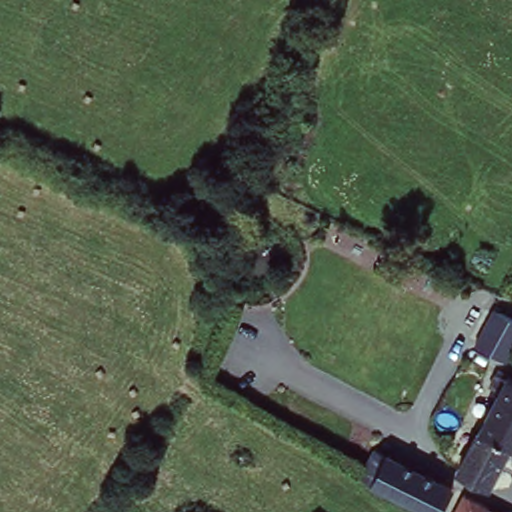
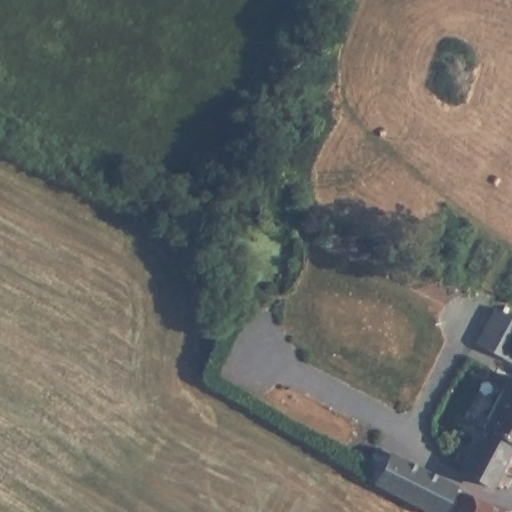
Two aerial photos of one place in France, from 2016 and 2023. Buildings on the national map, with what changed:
unchanged [(512,319),(512,357),(511,359),(475,342),(491,310),(512,319)]
unchanged [(494,478),(463,462),(501,392),(480,380),(486,368),(510,379),(512,376),(512,444),(494,478)]
unchanged [(453,490),(458,493),(448,512),(419,512),(359,482),(375,452),(453,490)]
unchanged [(465,497),(496,512),(457,512),(465,497)]

